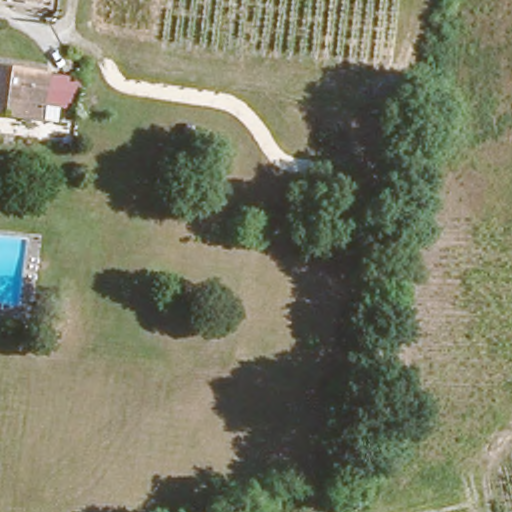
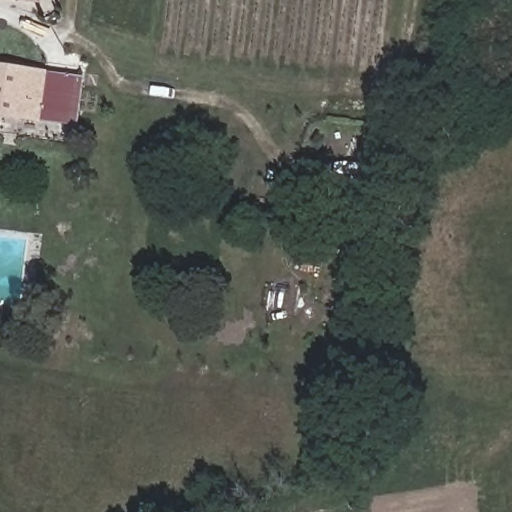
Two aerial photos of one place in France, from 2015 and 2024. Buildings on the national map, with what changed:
unchanged [(79,105),(42,104),(41,118),(0,113),(0,62),(80,75),(79,105)]

